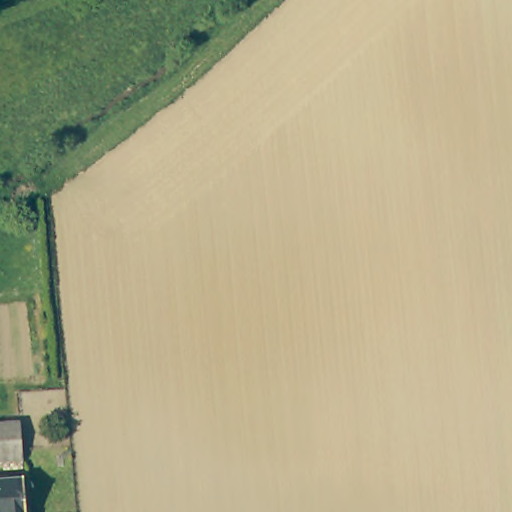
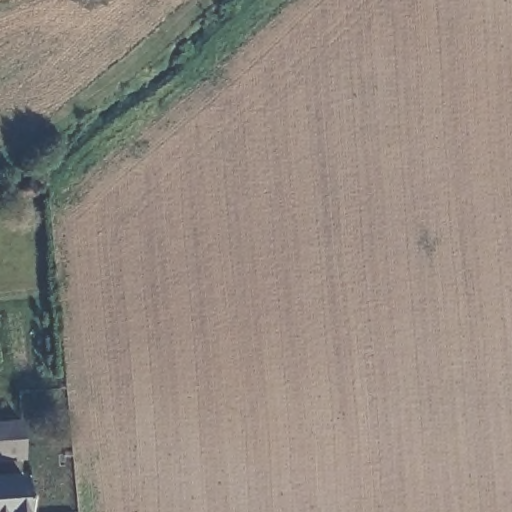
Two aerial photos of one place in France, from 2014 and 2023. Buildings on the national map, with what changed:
unchanged [(0,455),(0,419),(25,417),(27,453),(0,455)]
unchanged [(0,512),(0,474),(29,473),(30,512),(0,512)]

